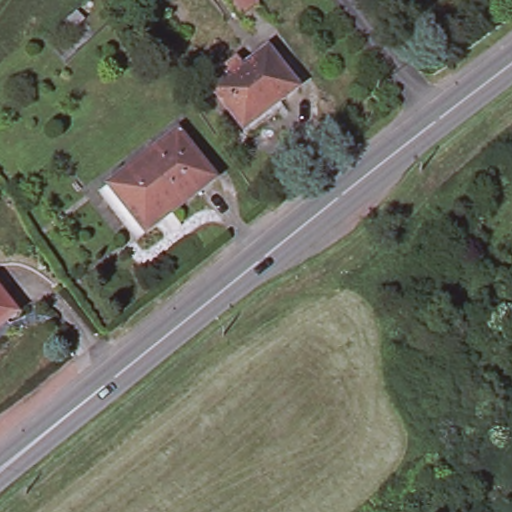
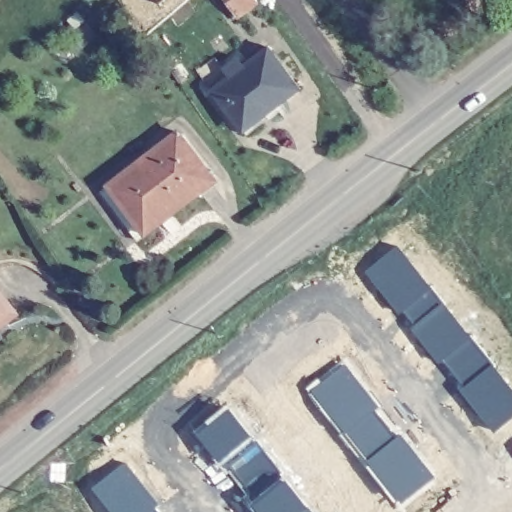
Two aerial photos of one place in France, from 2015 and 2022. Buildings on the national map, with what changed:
unchanged [(225,0),(256,0),(258,2),(237,16),(225,0)]
unchanged [(238,124),(211,90),(229,76),(223,68),(236,57),(243,66),(268,47),(299,88),(280,102),(284,107),(270,121),(268,119),(246,134),(238,124)]
unchanged [(107,185),(178,131),(215,180),(171,214),(144,234),(138,226),(107,185)]
unchanged [(19,185),(25,193),(19,197),(13,190),(19,185)]
new [(512,392),(512,419),(496,433),(459,391),(464,386),(444,360),(438,366),(411,330),(416,326),(404,311),(400,317),(365,271),(397,247),(512,392)]
unchanged [(16,313),(0,326),(0,292),(16,313)]
new [(344,363),(381,409),(374,413),(396,440),(400,435),(434,477),(400,507),(310,391),(344,363)]
new [(311,512),(252,512),(249,509),(254,504),(219,463),(218,465),(193,433),(226,406),(311,512)]
new [(159,506),(153,510),(155,512),(110,512),(93,489),(126,465),(159,506)]

